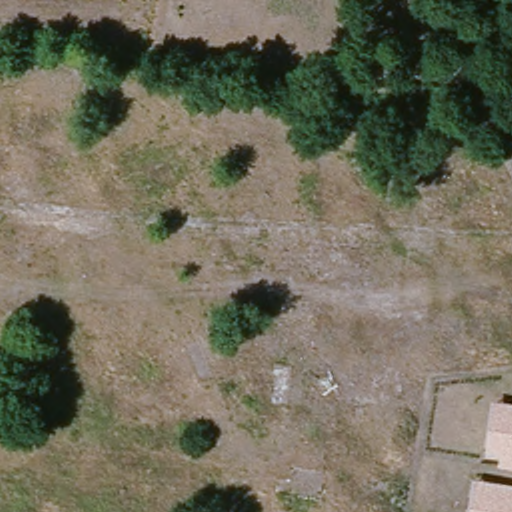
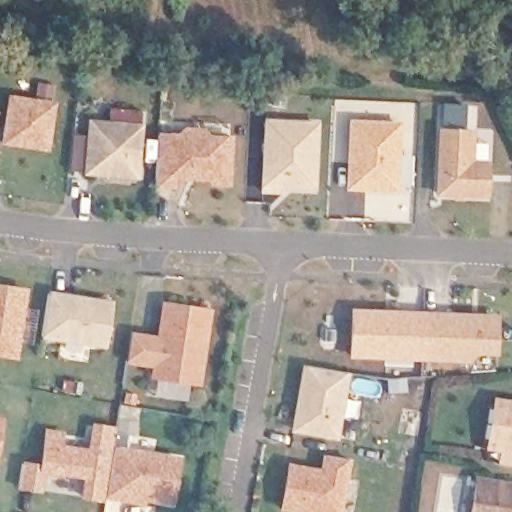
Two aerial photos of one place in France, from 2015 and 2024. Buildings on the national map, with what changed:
new [(57,103),(49,154),(0,146),(9,95),(57,103)]
new [(349,119),(403,121),(400,191),(347,191),(349,119)]
new [(88,120),(144,124),(141,180),(84,177),(88,120)]
new [(319,124),(315,190),(283,189),(284,196),(261,194),(264,120),(319,124)]
new [(178,133),(185,126),(204,126),(210,133),(234,135),(233,188),(211,188),(212,181),(179,180),(178,191),(155,189),(158,133),(178,133)]
new [(436,196),(439,127),(477,129),(476,160),(491,161),(491,199),(436,196)]
new [(18,361),(0,358),(0,285),(29,290),(18,361)]
new [(114,303),(106,349),(42,339),(49,292),(114,303)]
new [(156,336),(161,302),(213,309),(200,387),(151,379),(153,369),(126,366),(129,333),(156,336)]
new [(499,315),(498,357),(479,356),(470,363),(349,359),(351,309),(499,315)]
new [(339,440),(290,432),(302,365),(349,374),(339,440)]
unchanged [(497,465),(499,455),(485,452),(494,399),(512,402),(512,467),(497,465)]
new [(0,453),(0,416),(6,417),(0,453)]
new [(40,463),(44,429),(65,433),(64,445),(88,449),(91,424),(114,428),(111,447),(180,457),(171,508),(146,504),(145,507),(105,500),(105,503),(81,499),(84,480),(44,475),(41,495),(20,491),(24,461),(40,463)]
new [(319,468),(322,455),(351,459),(342,512),(285,512),(280,511),(288,462),(319,468)]
unchanged [(512,482),(512,512),(472,512),(477,477),(512,482)]

